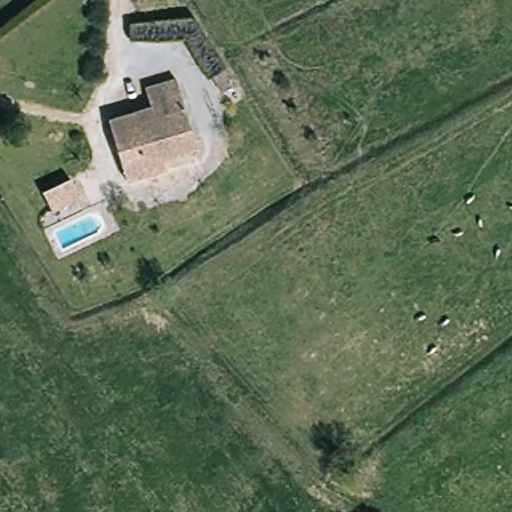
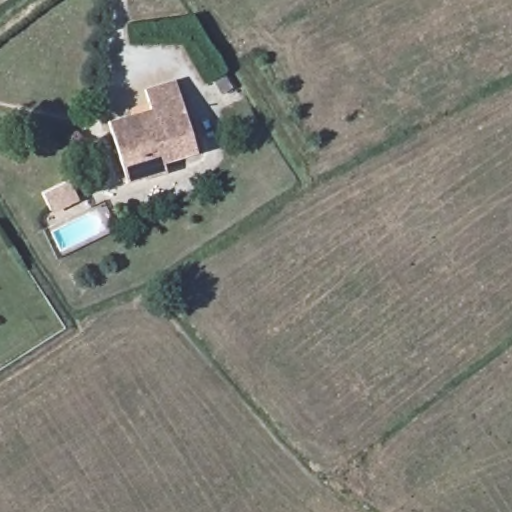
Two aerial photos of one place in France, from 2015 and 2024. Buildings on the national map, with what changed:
unchanged [(230,82),(219,88),(210,71),(221,65),(230,82)]
unchanged [(126,175),(121,156),(110,115),(132,109),(151,103),(145,83),(175,74),(194,143),(164,151),(167,164),(126,175)]
unchanged [(51,207),(42,190),(69,177),(78,194),(51,207)]

